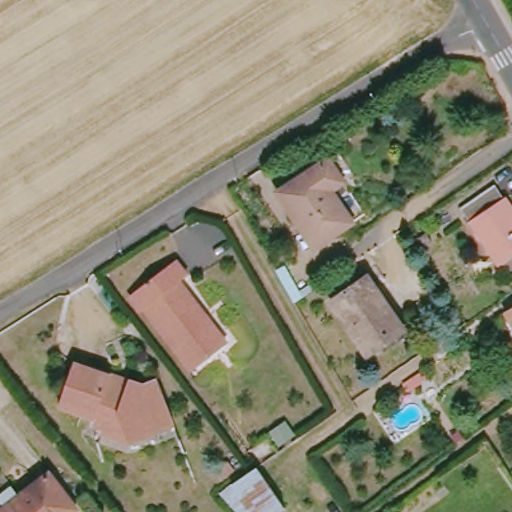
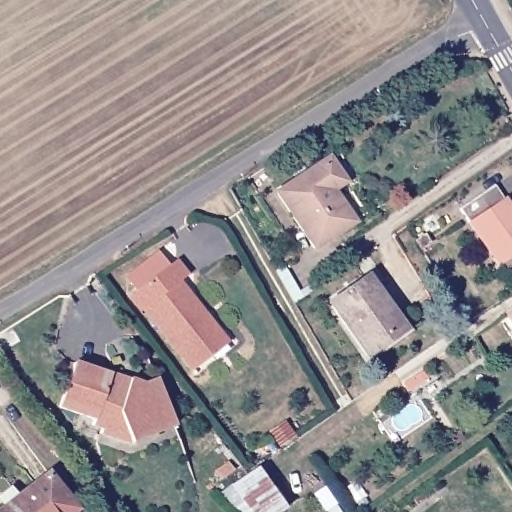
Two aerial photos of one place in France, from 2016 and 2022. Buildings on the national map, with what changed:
unchanged [(308,250),(269,197),(315,162),(356,213),(308,250)]
unchanged [(512,224),(512,257),(493,269),(456,212),(490,190),(512,224)]
unchanged [(206,356),(185,373),(139,312),(134,315),(121,299),(168,263),(180,279),(174,283),(214,334),(222,345),(206,356)]
unchanged [(399,335),(363,360),(324,307),(360,280),(399,335)]
unchanged [(497,314),(512,307),(512,341),(497,314)]
unchanged [(177,433),(144,444),(141,436),(118,445),(91,434),(92,429),(80,424),(80,416),(49,404),(66,361),(95,372),(114,379),(130,381),(140,372),(153,389),(167,408),(177,433)]
unchanged [(241,477),(251,472),(280,509),(276,512),(242,512),(224,489),(241,477)]
unchanged [(58,512),(0,512),(0,505),(40,475),(65,507),(58,512)]

